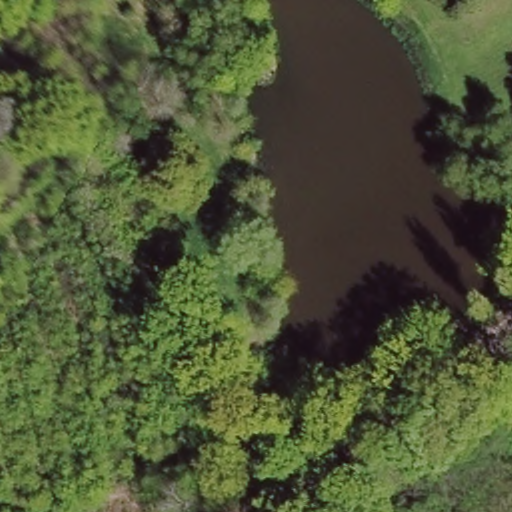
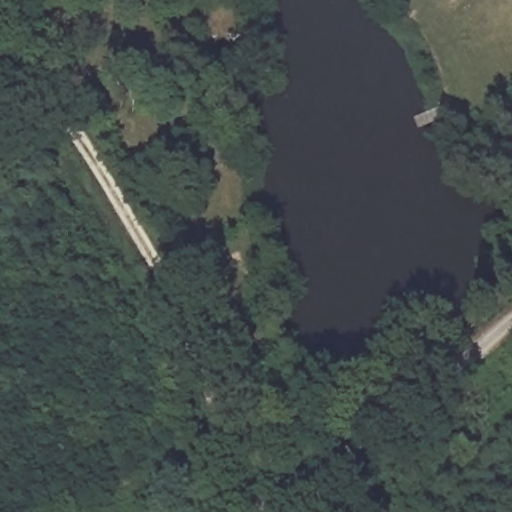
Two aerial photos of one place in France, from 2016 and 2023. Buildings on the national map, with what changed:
[]

